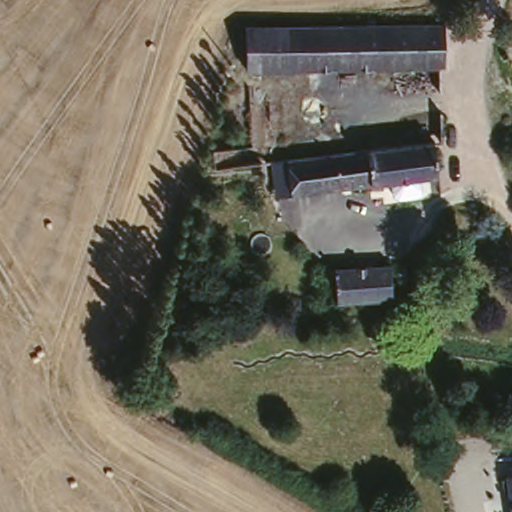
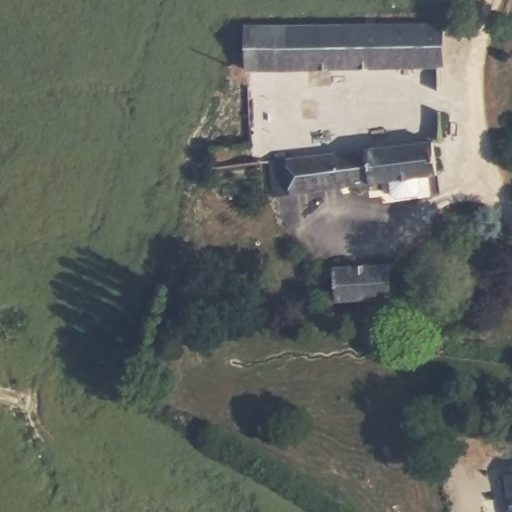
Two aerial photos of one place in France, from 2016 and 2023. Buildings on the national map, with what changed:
unchanged [(439,17),(441,60),(247,67),(242,24),(439,17)]
unchanged [(437,135),(443,173),(282,197),(277,160),(437,135)]
unchanged [(386,261),(390,297),(335,301),(333,278),(323,279),(322,266),(386,261)]
unchanged [(512,512),(506,512),(500,471),(512,469),(512,512)]

